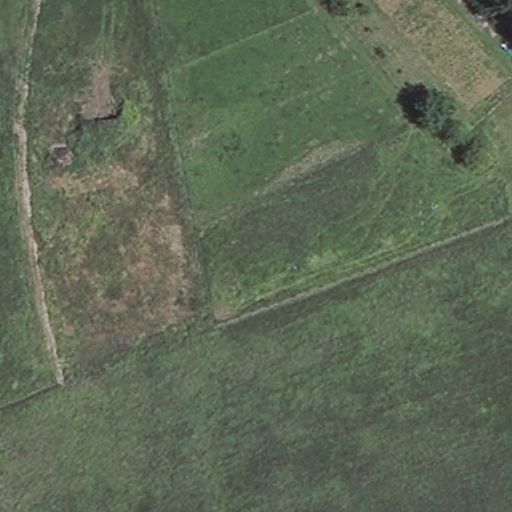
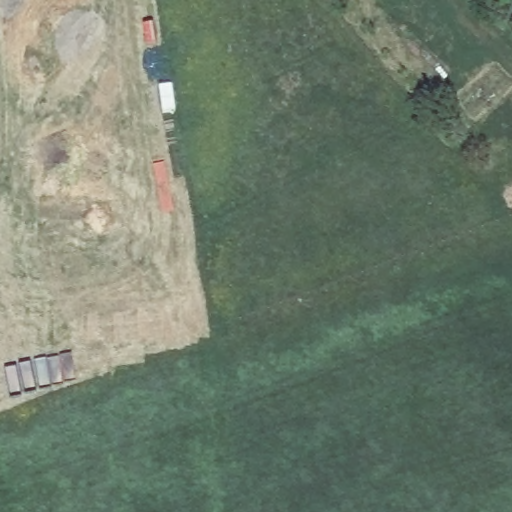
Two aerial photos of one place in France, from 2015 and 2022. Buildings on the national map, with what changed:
[]

